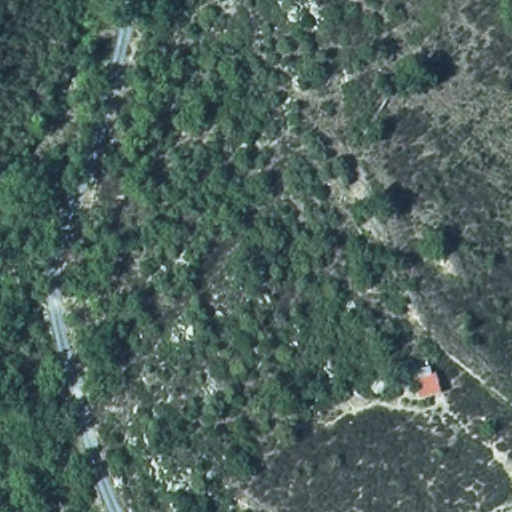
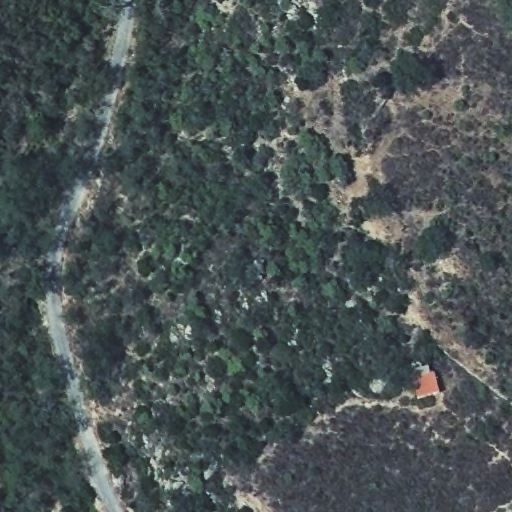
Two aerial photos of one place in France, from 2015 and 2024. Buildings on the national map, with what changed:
unchanged [(432,376),(438,391),(414,398),(410,385),(408,378),(432,376)]

